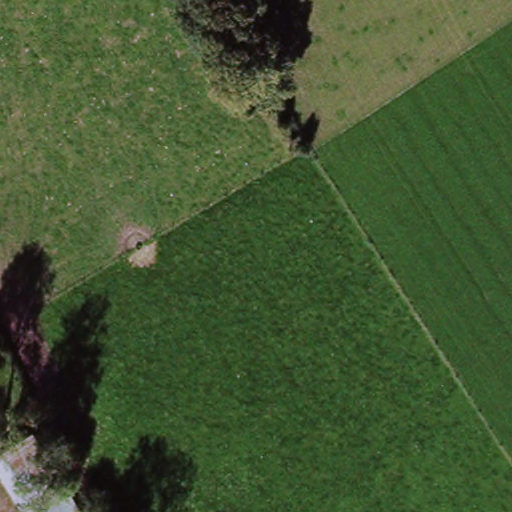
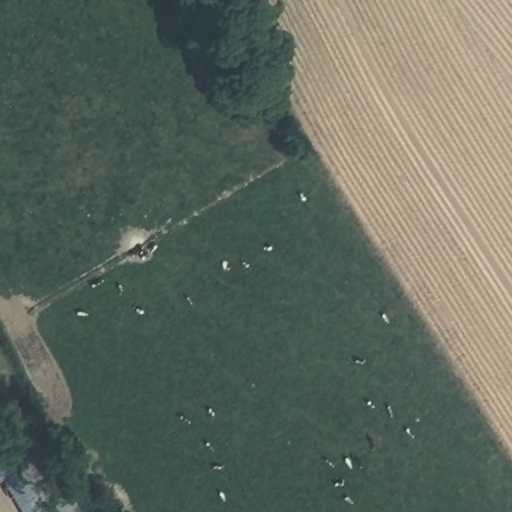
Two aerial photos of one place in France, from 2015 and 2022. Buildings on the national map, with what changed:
unchanged [(0,474),(0,454),(37,435),(80,512),(21,512),(0,474)]

